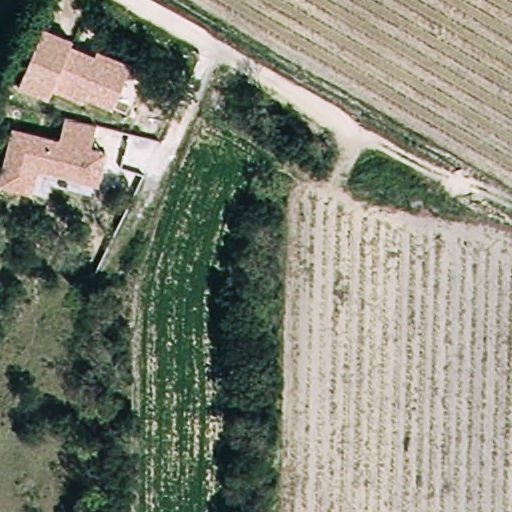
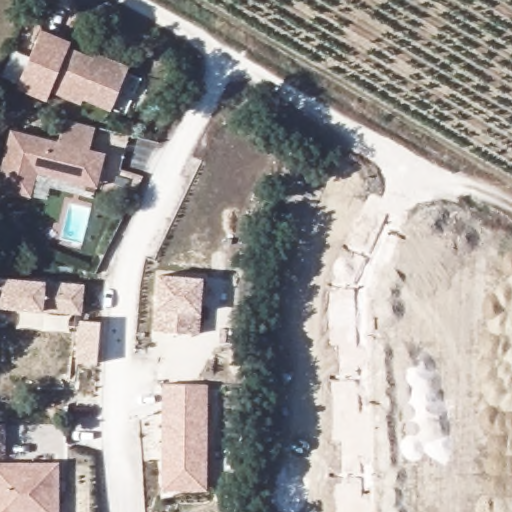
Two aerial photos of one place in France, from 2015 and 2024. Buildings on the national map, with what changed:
unchanged [(133,66),(112,110),(87,97),(82,105),(53,89),(48,100),(19,89),(45,30),(73,41),(71,45),(95,57),(99,52),(133,66)]
unchanged [(96,126),(91,150),(106,153),(98,186),(39,173),(32,197),(0,189),(0,180),(13,128),(59,141),(67,120),(96,126)]
new [(156,310),(159,273),(205,278),(202,315),(201,335),(155,331),(156,310)]
new [(208,383),(207,490),(161,490),(163,383),(208,383)]
new [(60,462),(60,512),(0,512),(0,462),(60,462)]

